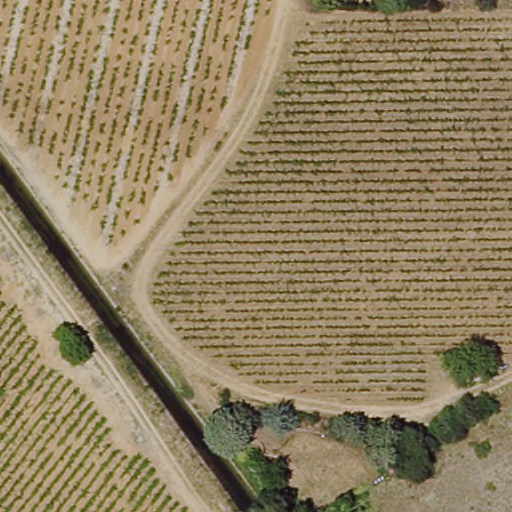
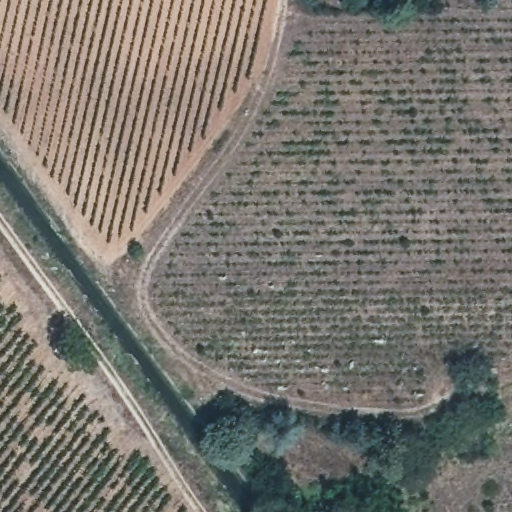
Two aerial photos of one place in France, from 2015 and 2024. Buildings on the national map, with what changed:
unchanged [(465,367),(484,362),(488,378),(470,383),(465,367)]

